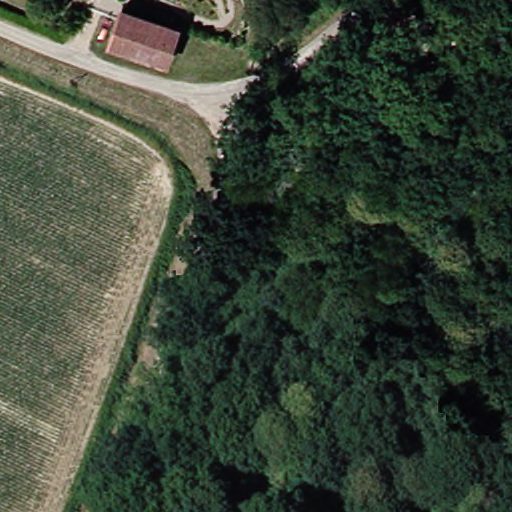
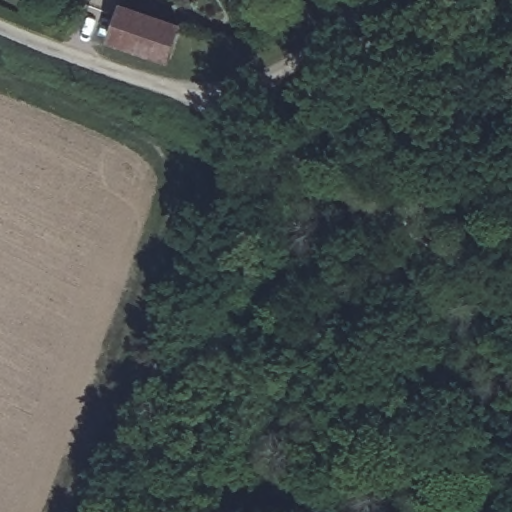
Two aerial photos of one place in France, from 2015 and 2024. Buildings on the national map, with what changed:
unchanged [(169,59),(115,38),(126,3),(182,23),(169,59)]

